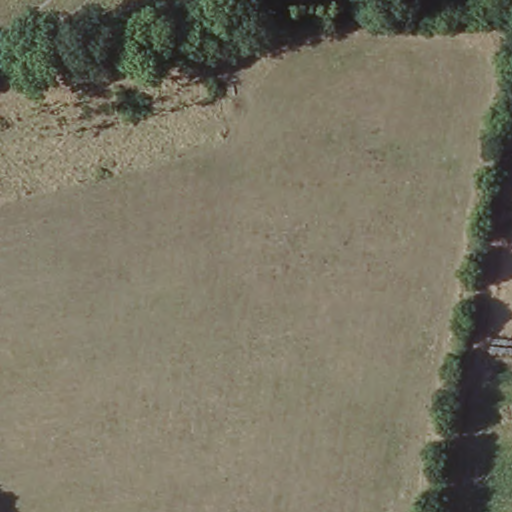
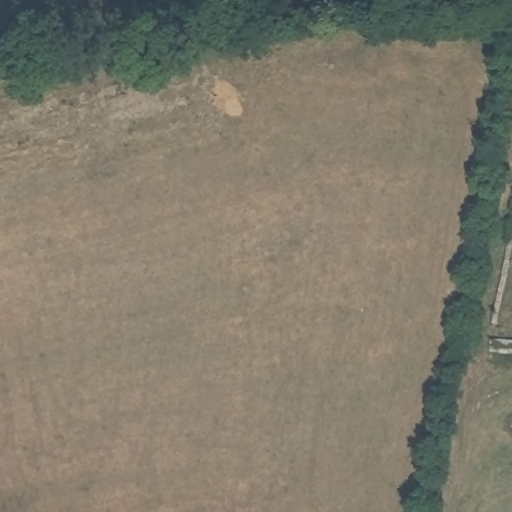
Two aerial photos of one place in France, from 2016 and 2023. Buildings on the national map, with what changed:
[]

